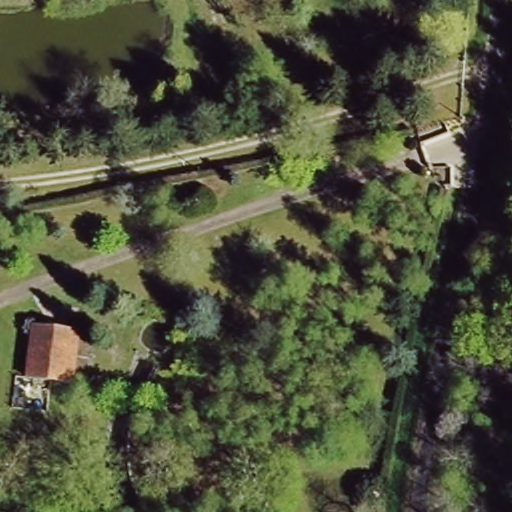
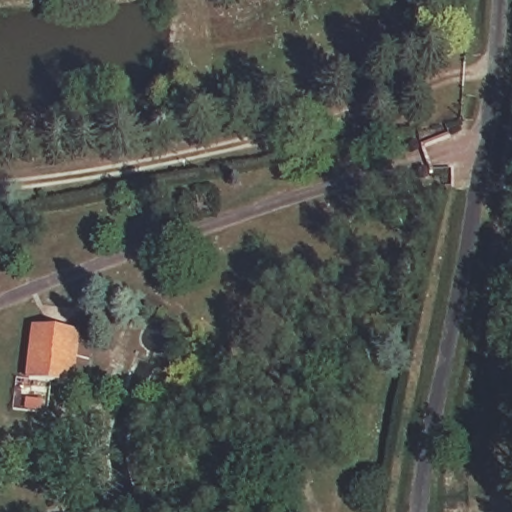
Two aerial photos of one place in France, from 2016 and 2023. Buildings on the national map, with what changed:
unchanged [(30,325),(75,327),(71,379),(25,377),(30,325)]

